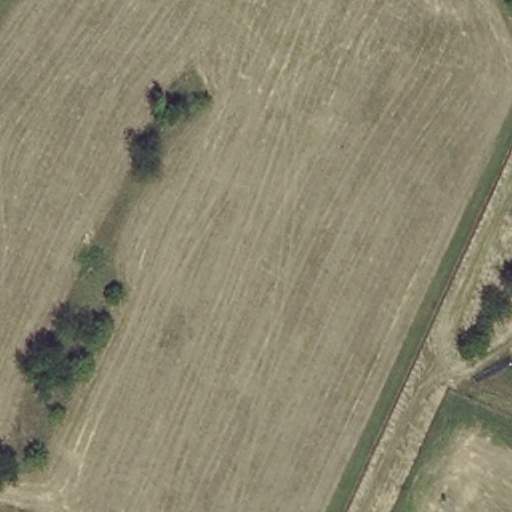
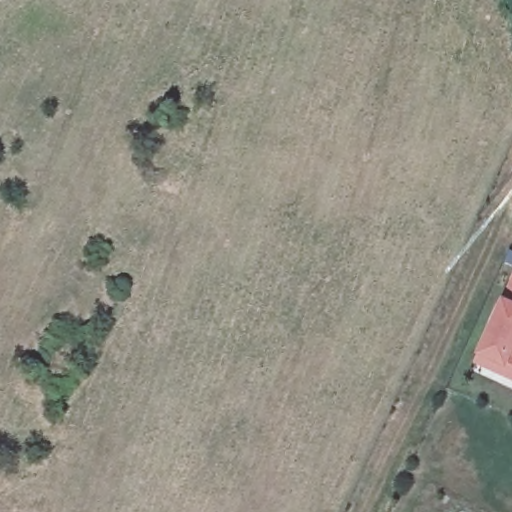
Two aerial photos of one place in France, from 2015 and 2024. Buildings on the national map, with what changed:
new [(475,362),(480,353),(506,297),(512,282),(512,380),(475,362)]

